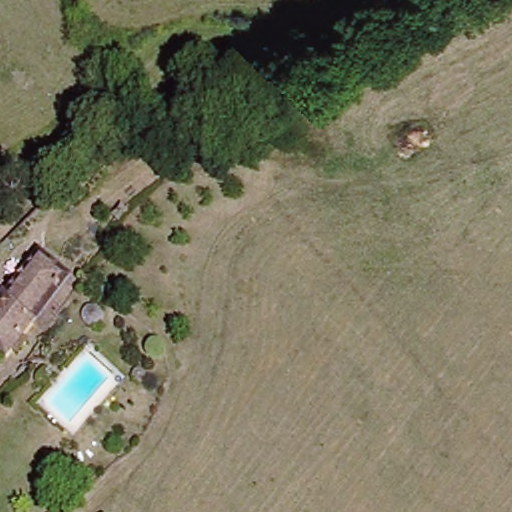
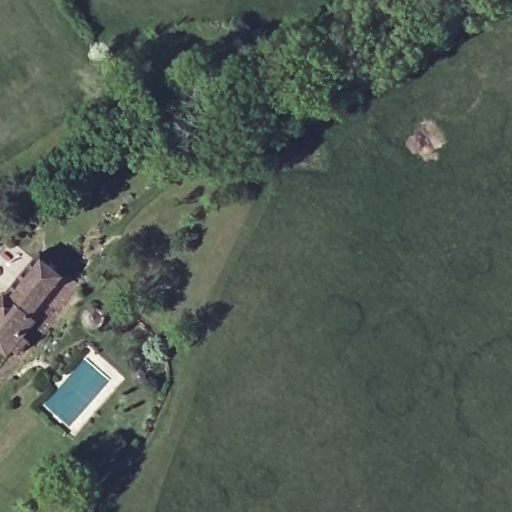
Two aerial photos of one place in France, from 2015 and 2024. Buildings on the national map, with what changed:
unchanged [(33,261),(62,287),(74,294),(54,319),(48,314),(34,335),(28,329),(0,363),(0,302),(33,261)]

